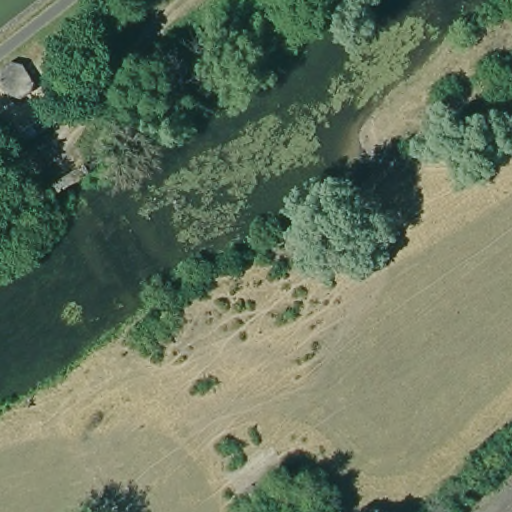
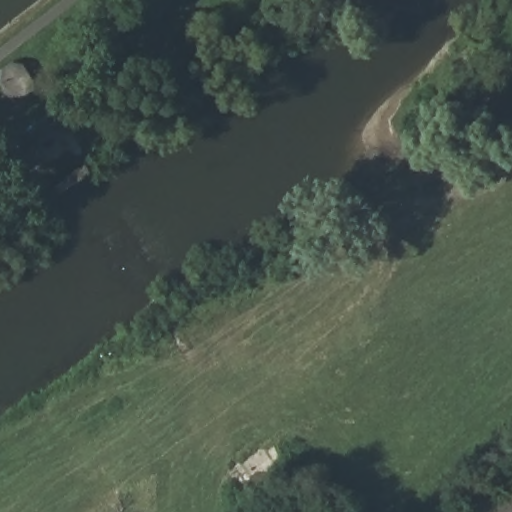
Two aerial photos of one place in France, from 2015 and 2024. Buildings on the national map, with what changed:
unchanged [(12,64),(24,66),(30,83),(32,91),(27,99),(19,101),(12,101),(2,96),(0,93),(0,67),(12,64)]

